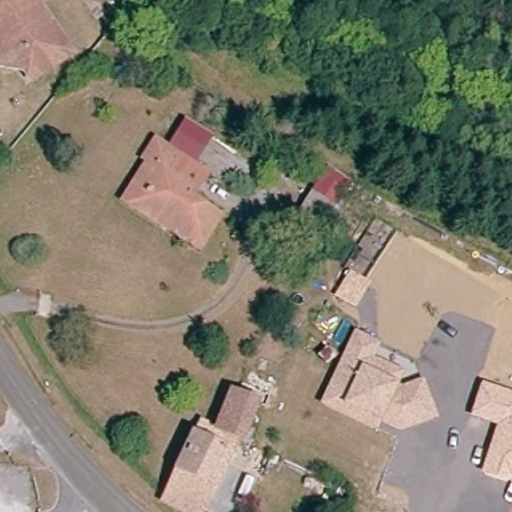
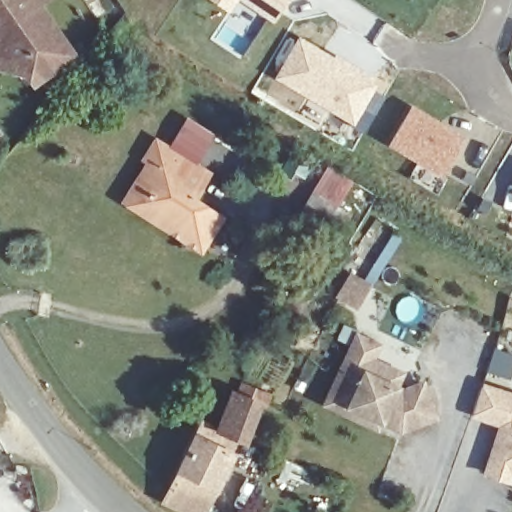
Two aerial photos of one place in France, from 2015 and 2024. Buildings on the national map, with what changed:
unchanged [(33,80),(4,73),(0,67),(0,0),(55,0),(42,9),(78,60),(59,74),(39,88),(33,80)]
new [(273,22),(238,0),(228,13),(209,0),(288,0),(273,22)]
new [(374,84),(352,121),(277,78),(300,41),(374,84)]
new [(466,137),(442,177),(386,145),(411,105),(466,137)]
new [(198,163),(211,172),(196,195),(179,184),(189,165),(165,150),(185,117),(215,135),(198,163)]
unchanged [(121,209),(146,165),(140,161),(152,142),(189,165),(179,184),(196,195),(191,203),(220,221),(199,256),(167,236),(135,219),(121,209)]
unchanged [(313,195),(336,209),(318,236),(296,222),(313,195)]
unchanged [(325,398),(331,386),(357,332),(377,342),(364,370),(402,388),(422,381),(434,415),(400,427),(378,416),(375,424),(325,398)]
unchanged [(469,415),(480,381),(512,391),(512,479),(512,478),(510,482),(482,473),(496,423),(469,415)]
unchanged [(206,420),(221,427),(236,397),(263,410),(262,413),(244,450),(239,448),(200,432),(206,420)]
unchanged [(207,512),(196,512),(169,496),(200,432),(239,448),(207,512)]

